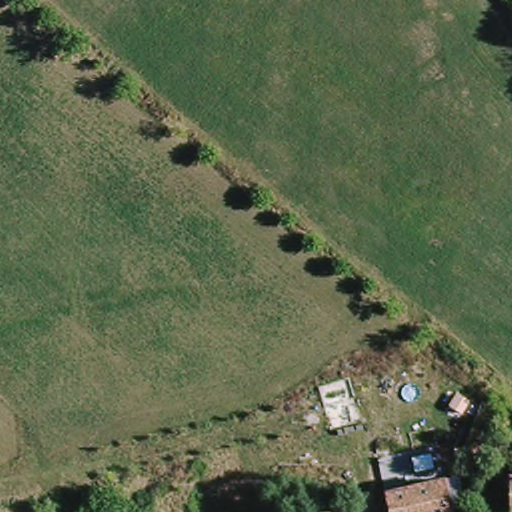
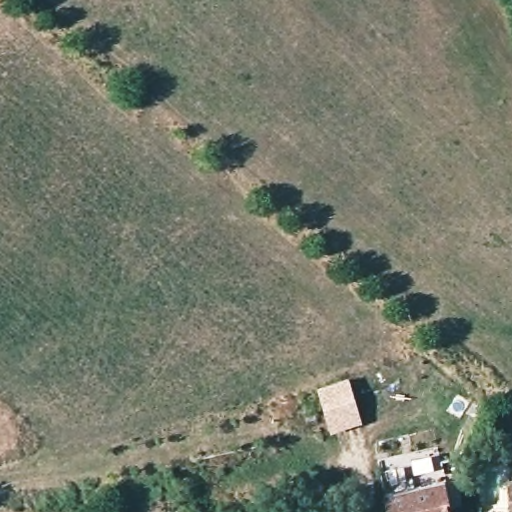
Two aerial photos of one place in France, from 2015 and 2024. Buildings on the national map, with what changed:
new [(362,423),(331,433),(317,389),(349,378),(362,423)]
unchanged [(508,512),(507,495),(476,496),(474,465),(507,463),(507,466),(512,466),(512,512),(508,512)]
unchanged [(449,481),(454,512),(391,512),(388,494),(449,481)]

